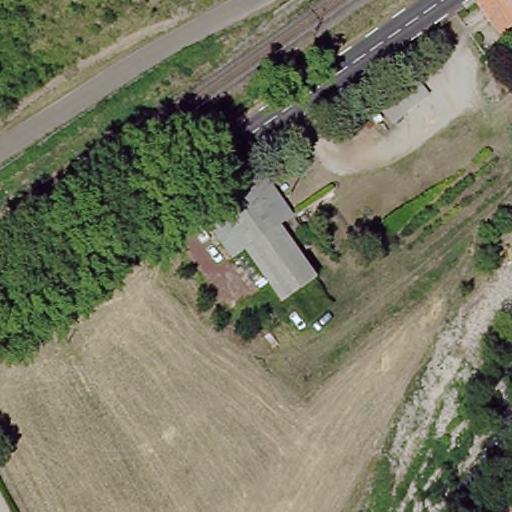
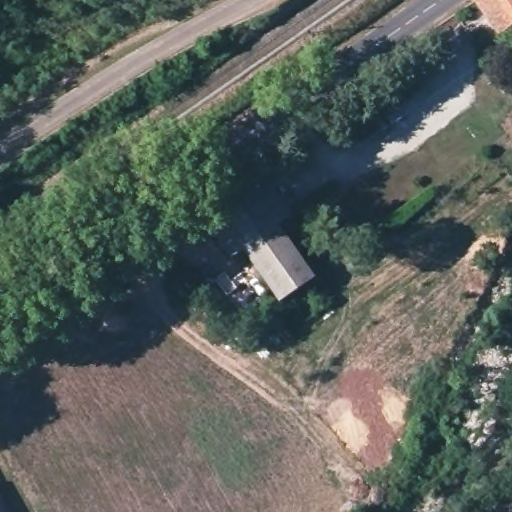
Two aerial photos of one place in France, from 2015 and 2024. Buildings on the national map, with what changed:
unchanged [(484,0),(512,0),(512,18),(500,3),(491,10),(484,0)]
unchanged [(260,157),(295,211),(281,220),(316,275),(282,298),(246,245),(234,253),(197,200),(260,157)]

